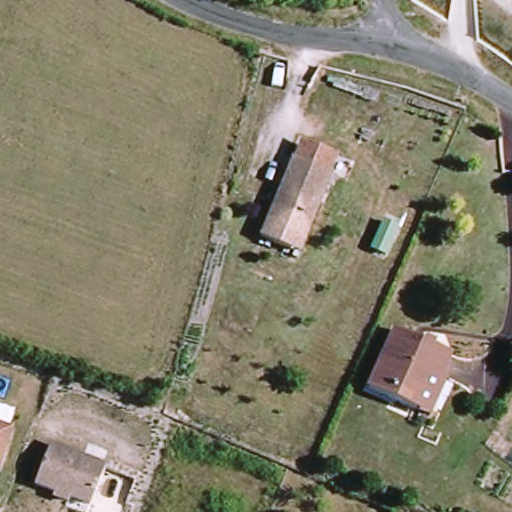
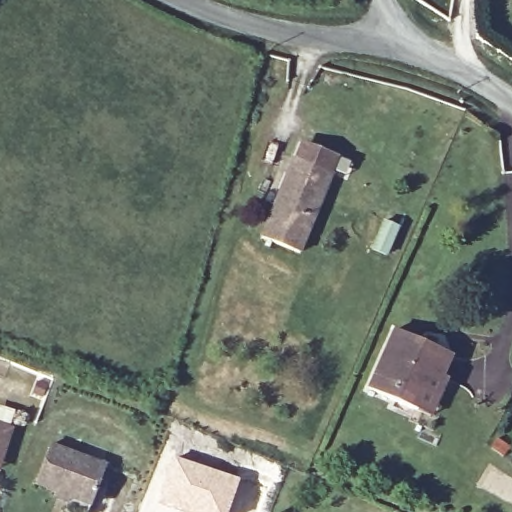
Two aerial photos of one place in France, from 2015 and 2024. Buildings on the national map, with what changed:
unchanged [(327,10),(325,0),(348,0),(350,5),(327,10)]
unchanged [(265,240),(300,170),(302,171),(309,157),(342,174),(335,187),(299,258),(265,240)]
unchanged [(431,413),(418,408),(373,388),(398,329),(453,353),(443,376),(447,377),(431,413)]
unchanged [(0,459),(0,427),(11,431),(0,459)]
unchanged [(60,492),(40,485),(55,445),(110,466),(94,506),(74,498),(71,502),(58,496),(60,492)]
new [(240,478),(228,512),(183,512),(156,503),(174,455),(240,478)]

